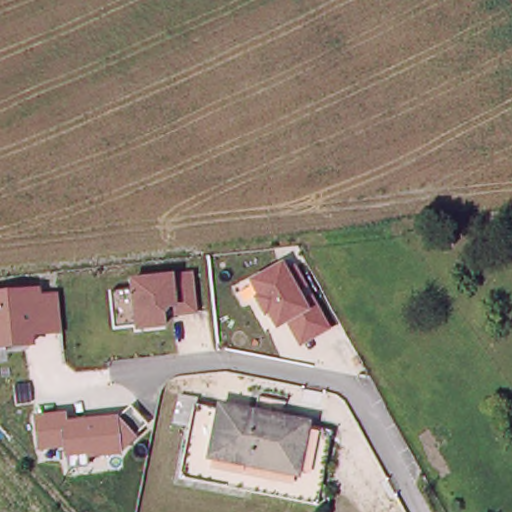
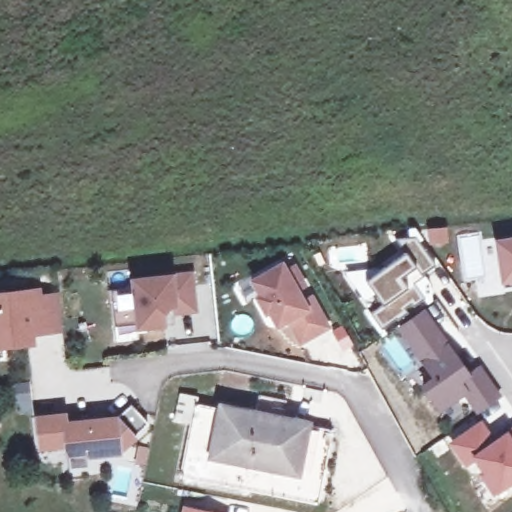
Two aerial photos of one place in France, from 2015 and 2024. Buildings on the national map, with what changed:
new [(512,235),(512,282),(499,284),(491,238),(512,235)]
new [(385,267),(405,251),(396,239),(414,237),(434,264),(410,282),(425,303),(384,332),(371,313),(382,304),(374,293),(365,300),(345,272),(385,267)]
unchanged [(299,347),(287,324),(276,330),(267,314),(264,316),(253,298),(257,295),(250,282),(282,262),(287,270),(295,265),(331,329),(299,347)]
unchanged [(112,294),(115,290),(130,289),(130,280),(192,272),(197,315),(164,317),(165,328),(135,331),(135,325),(115,327),(112,294)]
unchanged [(40,296),(57,294),(60,333),(33,337),(35,346),(0,349),(0,294),(39,289),(40,296)]
new [(467,372),(479,365),(500,396),(479,411),(465,390),(440,407),(423,383),(434,376),(400,326),(425,310),(467,372)]
unchanged [(337,493),(201,465),(210,414),(195,411),(200,381),(217,384),(217,393),(239,396),(240,396),(309,409),(330,413),(329,416),(350,421),(337,493)]
unchanged [(34,417),(65,413),(67,422),(116,417),(119,419),(130,406),(147,424),(121,454),(85,459),(86,468),(68,469),(67,458),(64,458),(63,448),(37,452),(34,417)]
new [(480,422),(494,441),(512,429),(512,479),(511,477),(494,490),(482,473),(486,470),(475,455),(467,462),(452,441),(480,422)]
new [(181,503),(225,512),(179,512),(181,503)]

